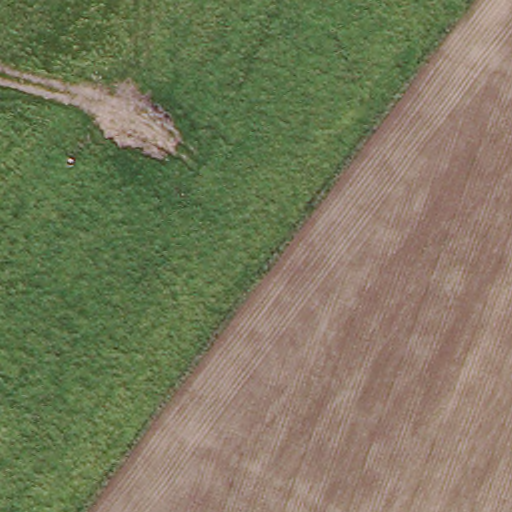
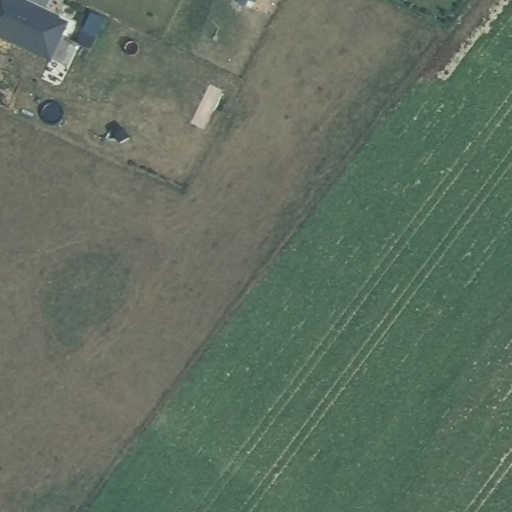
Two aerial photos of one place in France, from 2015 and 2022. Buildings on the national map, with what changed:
new [(51,63),(0,39),(0,0),(17,0),(69,25),(51,63)]
demolished [(168,154),(122,128),(132,111),(177,137),(168,154)]

